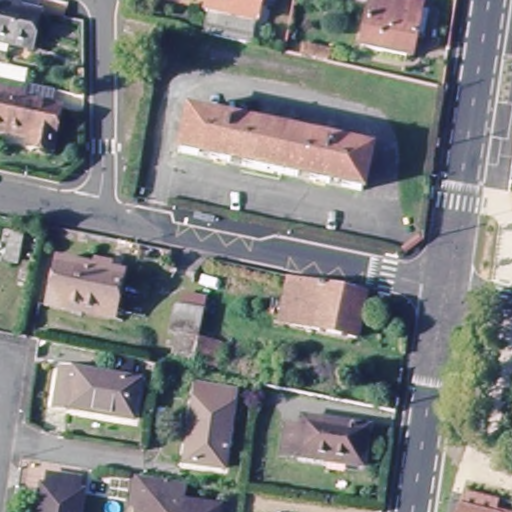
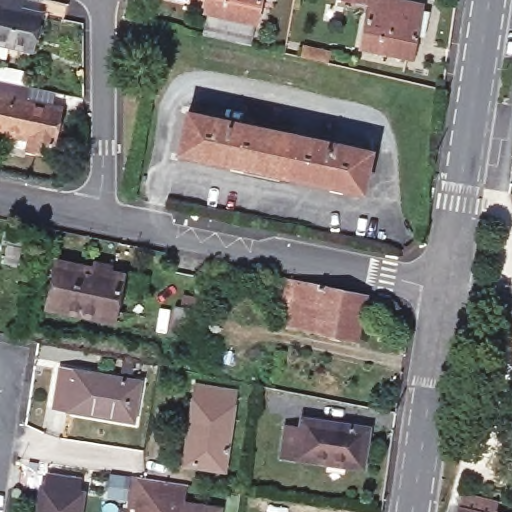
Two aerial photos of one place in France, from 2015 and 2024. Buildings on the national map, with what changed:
unchanged [(18,51),(14,66),(0,63),(0,0),(38,0),(35,16),(39,16),(30,54),(18,51)]
unchanged [(204,14),(207,0),(268,0),(267,4),(257,1),(247,46),(204,37),(209,15),(204,14)]
unchanged [(413,41),(408,64),(360,53),(368,10),(355,8),(322,1),(323,0),(393,0),(391,6),(419,11),(418,16),(428,19),(422,43),(413,41)]
unchanged [(296,58),(299,44),(326,50),(323,64),(296,58)]
unchanged [(62,103),(58,120),(63,121),(52,164),(28,159),(31,146),(0,140),(0,89),(27,95),(62,103)]
unchanged [(185,114),(368,153),(360,192),(177,153),(185,114)]
unchanged [(5,234),(19,236),(13,268),(0,266),(0,263),(5,234)]
unchanged [(111,321),(45,309),(54,264),(92,271),(93,265),(110,268),(109,274),(120,276),(111,321)]
unchanged [(287,281),(363,297),(354,341),(278,326),(287,281)]
unchanged [(200,344),(222,348),(217,369),(191,363),(177,360),(181,340),(174,338),(174,336),(160,334),(166,307),(179,311),(186,312),(188,300),(202,303),(208,304),(200,344)]
unchanged [(59,369),(138,382),(131,418),(54,405),(59,369)]
unchanged [(195,387),(235,393),(222,471),(182,465),(195,387)]
unchanged [(290,434),(306,437),(308,425),(372,434),(366,473),(287,461),(290,434)]
unchanged [(42,487),(47,487),(49,476),(76,480),(74,494),(80,495),(77,512),(38,512),(42,487)]
unchanged [(206,512),(135,512),(140,482),(165,486),(162,506),(206,512)]
unchanged [(459,510),(461,500),(491,507),(490,512),(459,512),(459,510)]
unchanged [(439,510),(448,512),(439,512),(439,510)]

